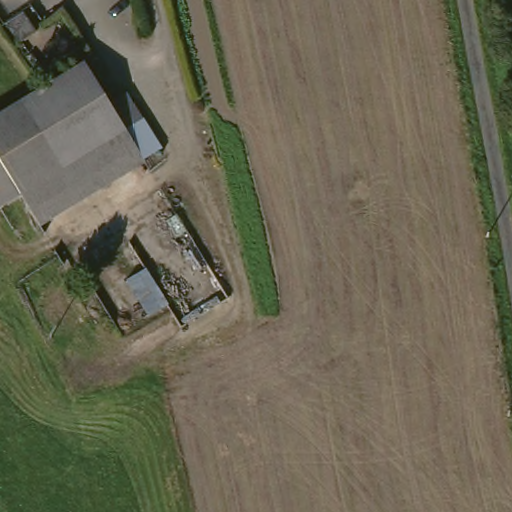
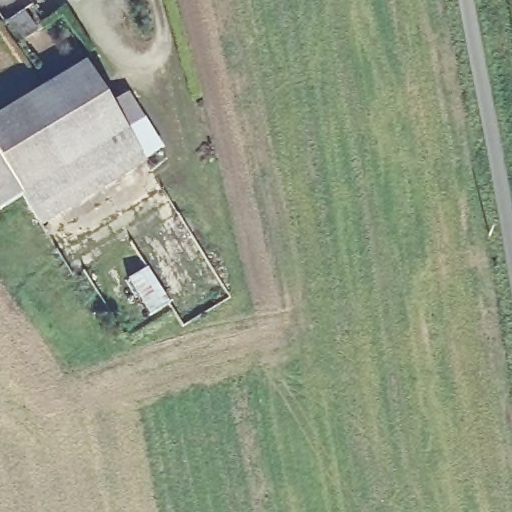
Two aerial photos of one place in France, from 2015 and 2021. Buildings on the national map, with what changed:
unchanged [(109,0),(145,0),(147,8),(117,25),(109,0)]
unchanged [(87,68),(110,106),(67,133),(81,156),(103,143),(122,173),(82,199),(36,229),(7,183),(0,187),(0,111),(82,60),(87,68)]
unchanged [(125,97),(139,120),(123,128),(143,159),(122,173),(103,143),(81,156),(67,133),(110,106),(125,97)]

